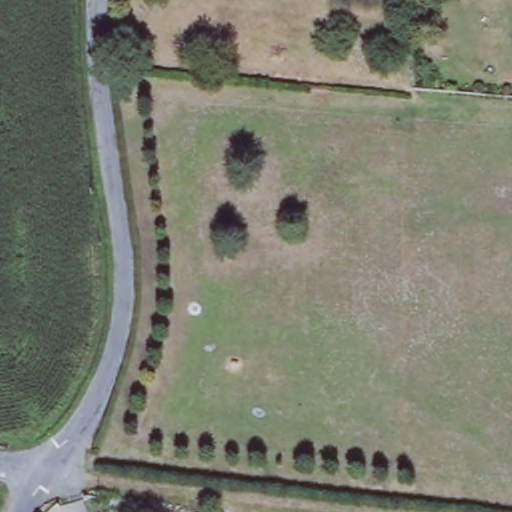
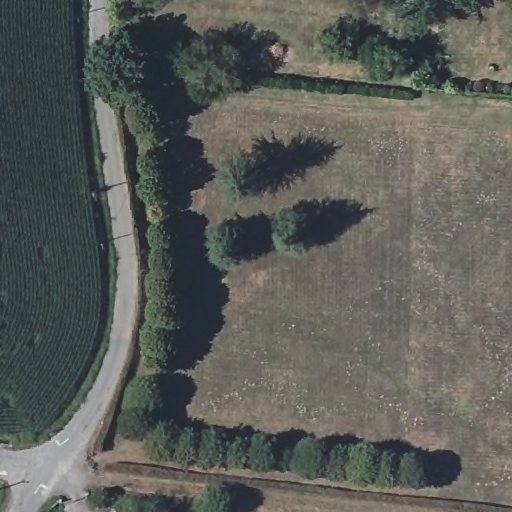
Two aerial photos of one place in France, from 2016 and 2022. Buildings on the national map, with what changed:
[]

